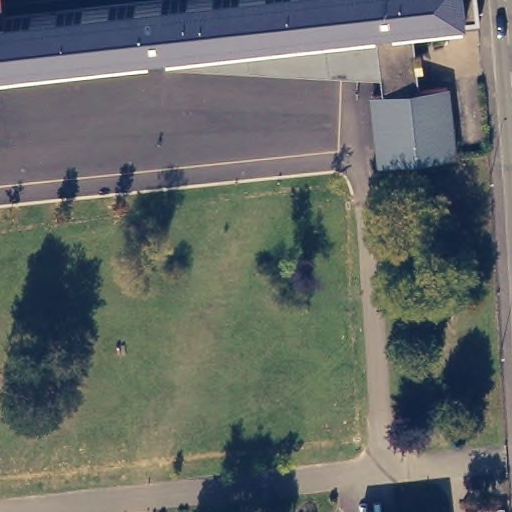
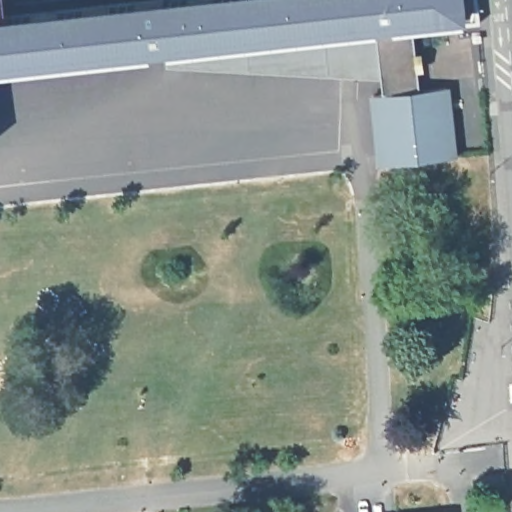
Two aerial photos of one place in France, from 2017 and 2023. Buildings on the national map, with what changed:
unchanged [(0,10),(0,0),(4,0),(5,10),(0,10)]
unchanged [(412,16),(165,39),(0,55),(0,10),(5,10),(93,0),(477,0),(479,17),(477,17),(460,19),(460,12),(412,16)]
unchanged [(420,85),(383,90),(381,72),(168,60),(165,39),(412,16),(420,85)]
unchanged [(447,82),(455,152),(382,161),(374,91),(383,90),(420,85),(447,82)]

